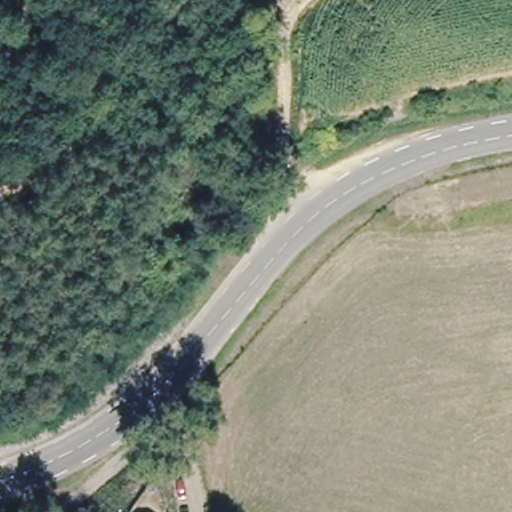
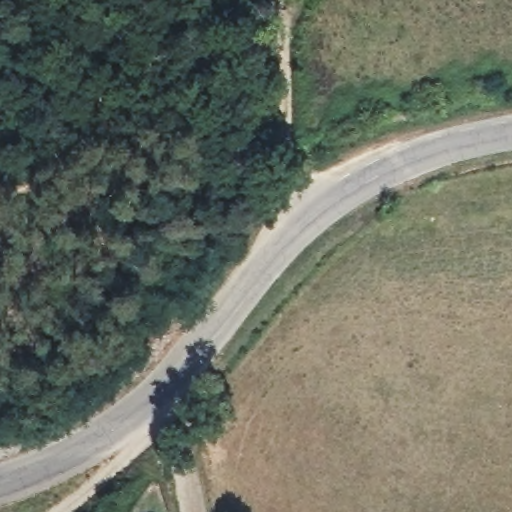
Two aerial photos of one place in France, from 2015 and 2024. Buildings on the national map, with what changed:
[]

